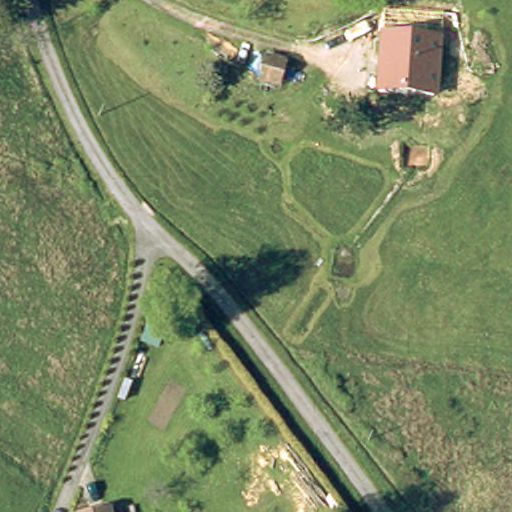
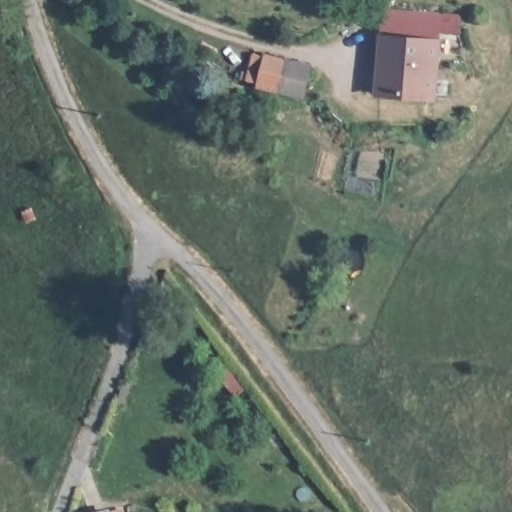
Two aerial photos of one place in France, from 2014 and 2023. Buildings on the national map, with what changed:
unchanged [(410,112),(370,109),(372,82),(382,82),(387,36),(400,36),(400,19),(447,24),(444,42),(440,74),(437,101),(417,97),(410,112)]
unchanged [(259,90),(259,78),(263,63),(312,70),(307,99),(259,90)]

